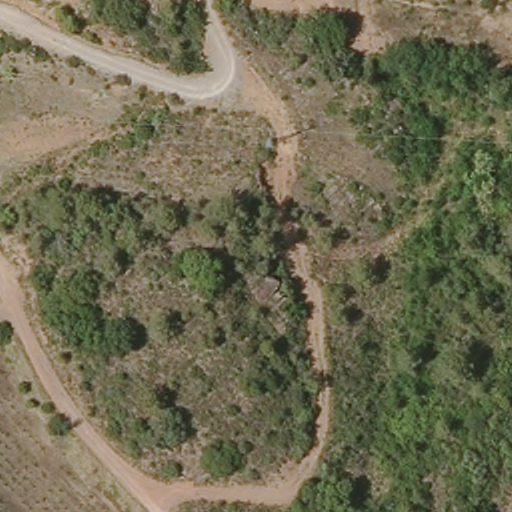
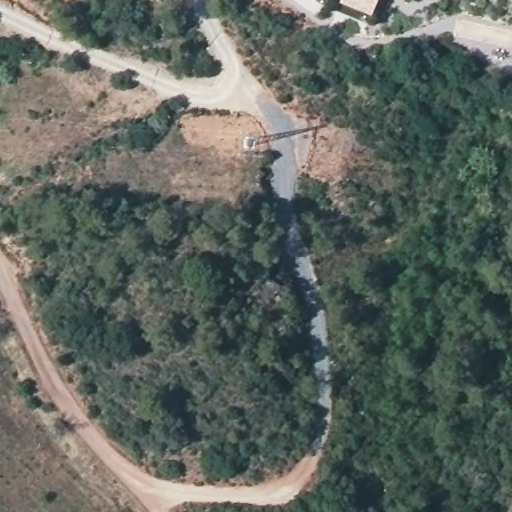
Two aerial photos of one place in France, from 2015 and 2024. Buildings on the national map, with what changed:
new [(372,14),(340,2),(342,0),(377,0),(372,14)]

